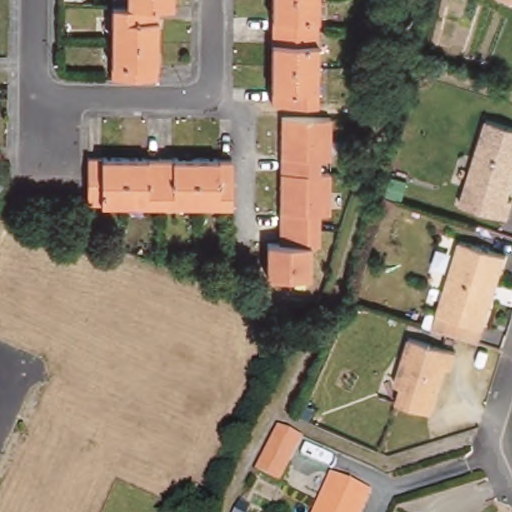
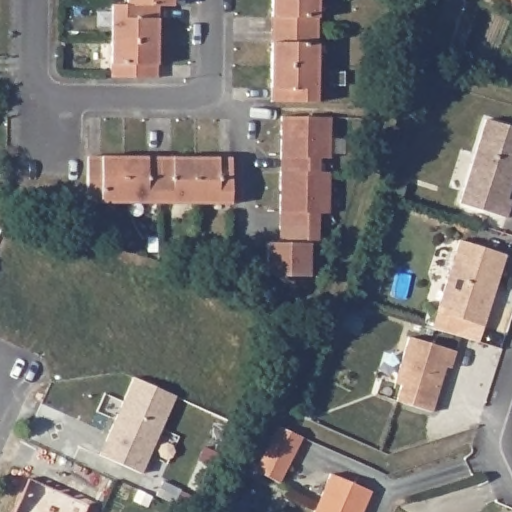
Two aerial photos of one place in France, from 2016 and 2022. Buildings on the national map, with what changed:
unchanged [(174,5),(169,5),(156,5),(156,75),(156,78),(110,78),(110,75),(110,4),(127,4),(128,0),(174,0),(174,5)]
unchanged [(317,104),(271,103),(272,0),(318,0),(317,104)]
unchanged [(327,114),(327,155),(315,154),(315,171),(326,172),(325,214),(312,214),(312,244),(305,244),(305,277),(265,277),(265,243),(279,243),(280,114),(327,114)]
unchanged [(512,128),(512,184),(509,194),(512,195),(512,204),(508,216),(459,200),(485,120),(512,128)]
unchanged [(84,157),(226,158),(227,158),(226,202),(84,201),(84,178),(84,157)]
unchanged [(506,254),(478,341),(445,331),(450,314),(438,310),(460,240),(506,254)]
unchanged [(457,354),(452,371),(447,369),(432,415),(397,404),(402,387),(396,385),(410,339),(457,354)]
new [(175,394),(141,474),(100,457),(133,378),(175,394)]
unchanged [(300,438),(280,484),(252,472),(275,426),(300,438)]
unchanged [(359,512),(311,512),(328,473),(368,491),(359,512)]

